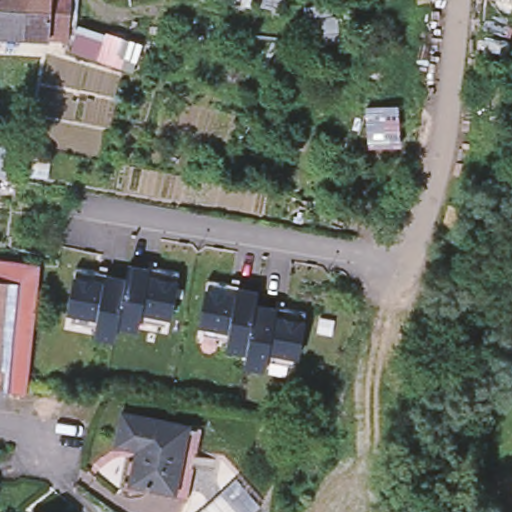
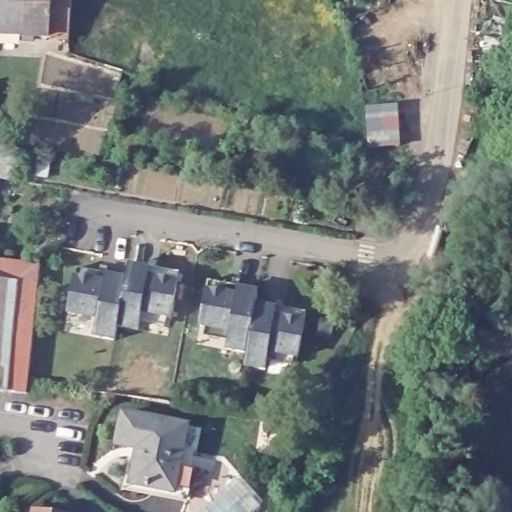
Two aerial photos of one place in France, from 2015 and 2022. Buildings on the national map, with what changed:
unchanged [(16,28),(0,27),(0,0),(18,0),(16,28)]
unchanged [(40,29),(16,28),(18,0),(42,0),(40,29)]
unchanged [(61,30),(40,29),(42,0),(62,0),(61,30)]
unchanged [(426,89),(421,134),(413,135),(412,154),(360,148),(364,128),(396,129),(403,88),(426,89)]
unchanged [(122,275),(124,261),(151,266),(151,264),(175,268),(167,313),(138,307),(135,325),(114,321),(122,275)]
unchanged [(72,264),(95,268),(95,271),(122,275),(114,321),(111,336),(91,332),(94,314),(65,309),(72,264)]
unchanged [(12,275),(23,275),(31,276),(33,276),(22,376),(20,389),(1,387),(0,386),(0,273),(12,275)]
unchanged [(227,348),(230,330),(201,325),(209,280),(232,284),(232,287),(259,292),(256,305),(248,352),(227,348)]
unchanged [(248,352),(256,305),(283,309),(284,307),(307,311),(300,356),(270,351),(266,368),(246,365),(248,352)]
unchanged [(127,480),(132,454),(135,455),(136,444),(111,439),(117,409),(181,422),(192,425),(188,452),(176,450),(168,488),(127,480)]
unchanged [(240,509),(243,512),(197,512),(223,490),(240,509)]

